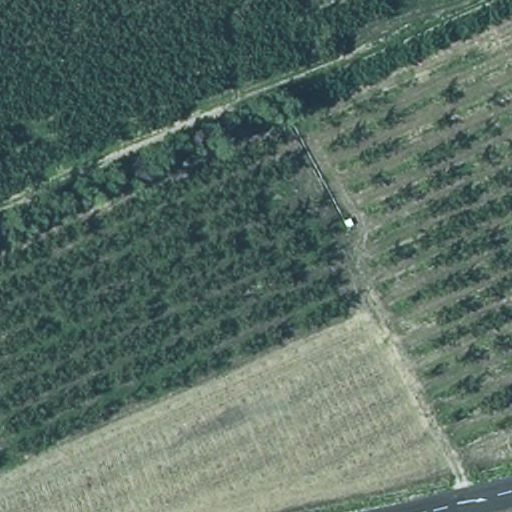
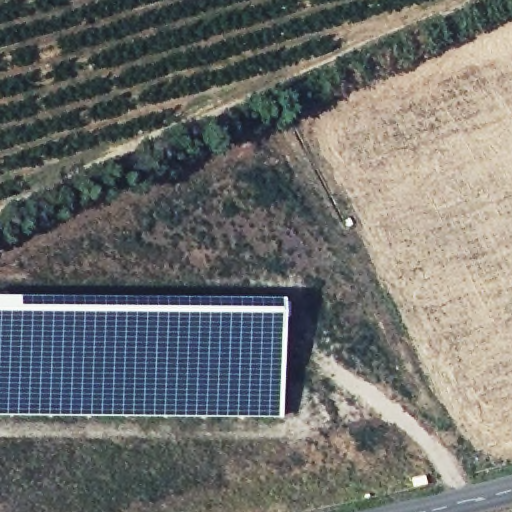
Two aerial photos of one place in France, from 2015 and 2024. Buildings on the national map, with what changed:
new [(0,418),(0,298),(282,300),(282,419),(0,418)]

